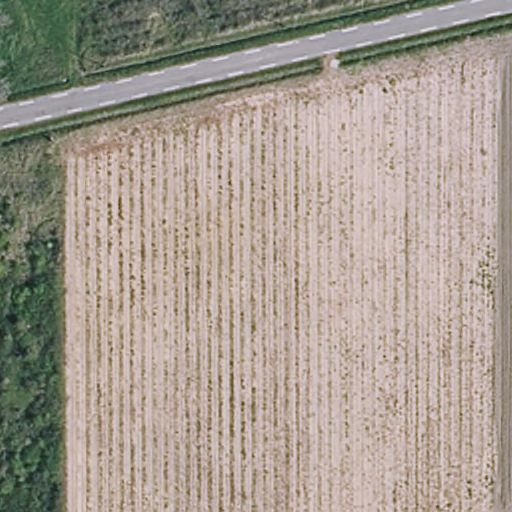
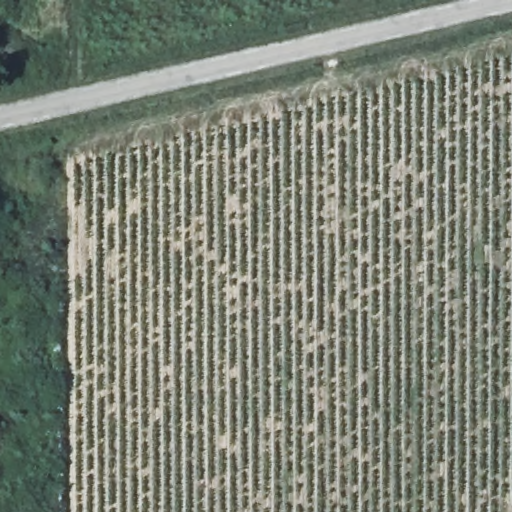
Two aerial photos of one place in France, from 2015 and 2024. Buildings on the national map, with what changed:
[]

